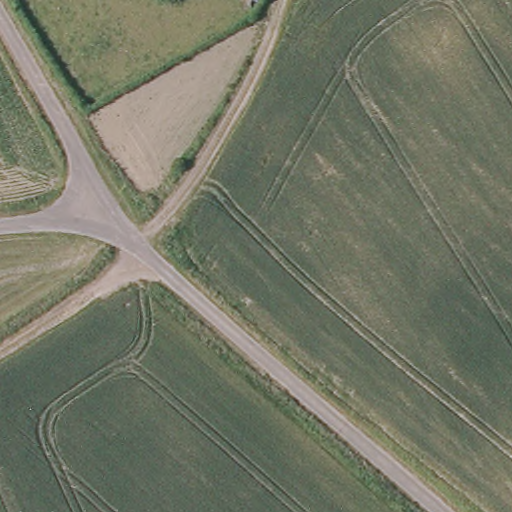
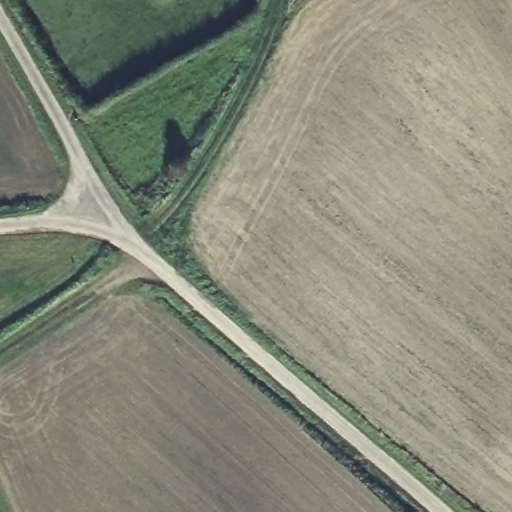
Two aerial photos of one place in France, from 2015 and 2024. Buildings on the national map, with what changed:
[]

